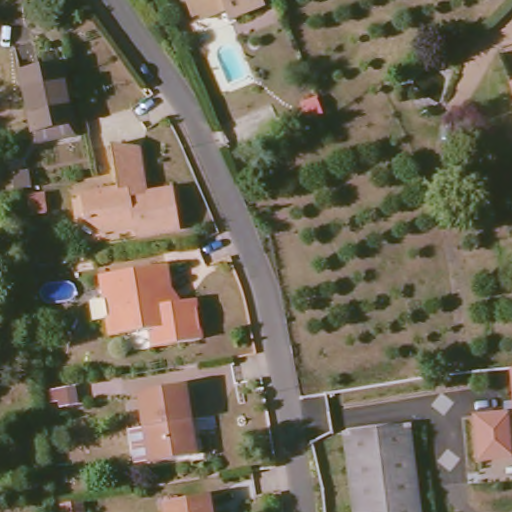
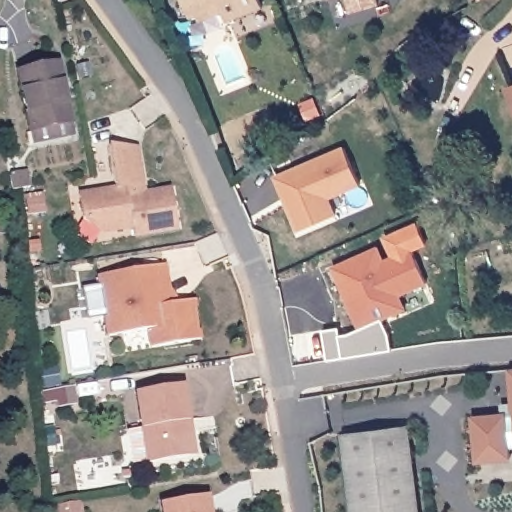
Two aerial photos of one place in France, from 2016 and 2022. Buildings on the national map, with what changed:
unchanged [(191,12),(185,0),(261,0),(261,2),(228,16),(223,6),(199,16),(196,10),(191,12)]
new [(349,14),(346,0),(378,0),(379,6),(349,14)]
new [(479,0),(482,0),(479,2),(479,0)]
unchanged [(24,137),(21,124),(26,123),(14,65),(53,57),(65,116),(68,128),(24,137)]
unchanged [(512,83),(512,93),(509,84),(512,83)]
new [(360,185),(331,198),(336,214),(298,231),(274,176),(344,146),(360,185)]
unchanged [(139,237),(138,229),(105,235),(86,220),(82,196),(121,190),(114,147),(141,149),(148,188),(144,188),(146,197),(176,191),(183,231),(139,237)]
unchanged [(19,192),(13,192),(10,177),(18,176),(27,175),(29,190),(19,192)]
new [(402,296),(407,310),(359,331),(333,267),(379,245),(384,259),(411,247),(428,285),(402,296)]
unchanged [(156,349),(153,331),(113,337),(103,276),(169,267),(173,296),(180,305),(198,302),(205,341),(156,349)]
unchanged [(512,369),(512,402),(509,370),(512,369)]
unchanged [(191,457),(148,463),(138,392),(186,385),(191,421),(197,457),(191,457)]
unchanged [(504,405),(512,402),(512,460),(477,463),(473,416),(506,412),(504,405)]
unchanged [(338,432),(403,424),(414,512),(349,512),(338,432)]
unchanged [(163,502),(207,497),(209,512),(165,512),(163,502)]

